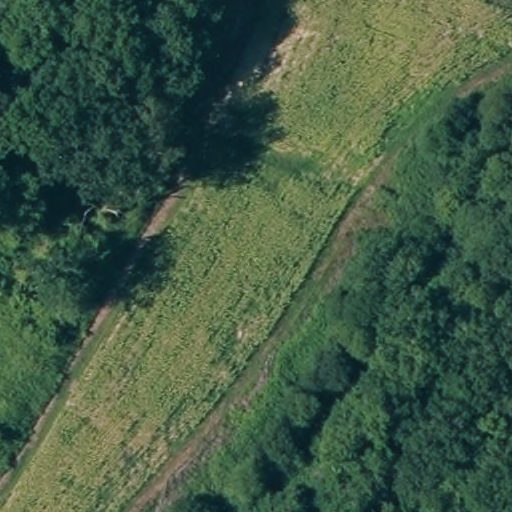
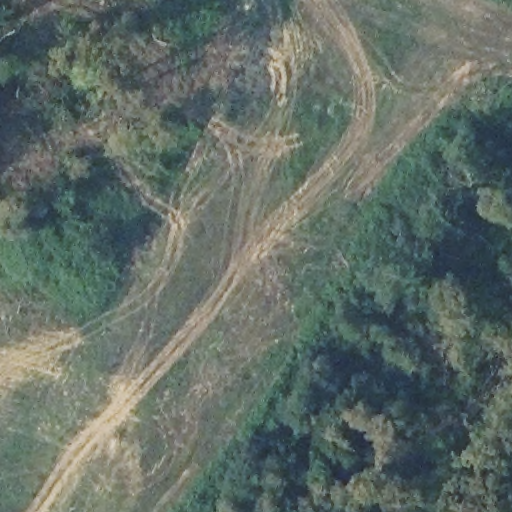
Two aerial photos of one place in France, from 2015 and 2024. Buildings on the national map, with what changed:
[]

